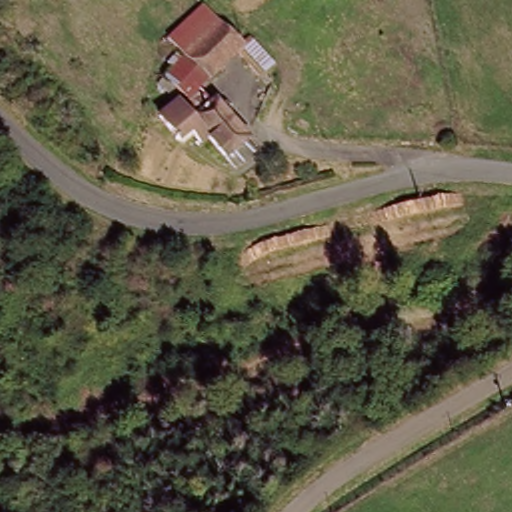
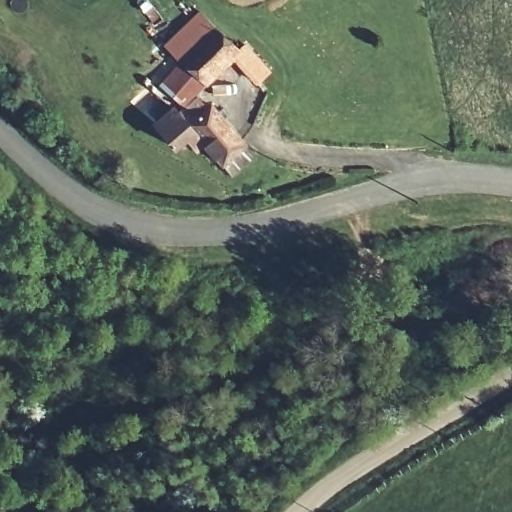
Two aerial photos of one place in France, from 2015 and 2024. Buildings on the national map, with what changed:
unchanged [(239,50),(249,42),(272,69),(254,84),(232,60),(193,94),(209,112),(217,105),(249,144),(244,149),(252,157),(232,176),(203,145),(172,113),(180,105),(159,83),(181,64),(162,45),(201,9),(239,50)]
unchanged [(180,105),(172,113),(203,145),(195,150),(182,136),(173,147),(152,122),(167,110),(152,92),(159,83),(180,105)]

